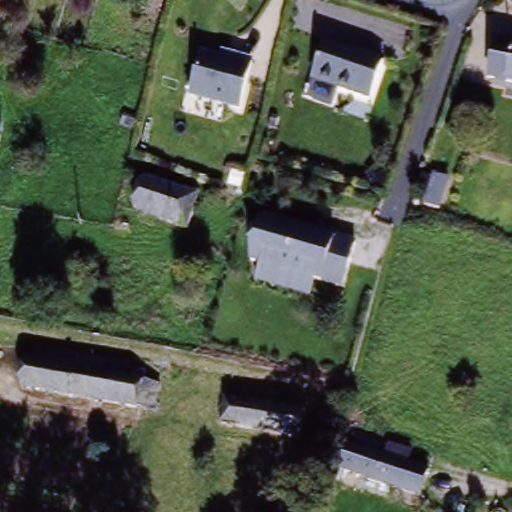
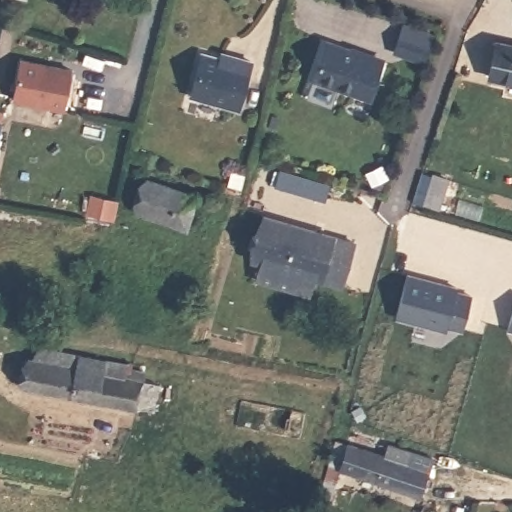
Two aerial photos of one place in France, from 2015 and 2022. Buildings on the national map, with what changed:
unchanged [(489,74),(497,38),(512,42),(512,81),(489,74)]
unchanged [(312,80),(326,40),(383,60),(369,100),(312,80)]
unchanged [(190,90),(204,50),(235,60),(237,55),(254,60),(237,106),(190,90)]
new [(20,61),(72,72),(64,110),(12,100),(20,61)]
new [(331,186),(326,201),(270,186),(275,171),(331,186)]
unchanged [(452,176),(444,209),(424,204),(432,172),(452,176)]
unchanged [(145,183),(180,194),(182,187),(197,191),(188,222),(138,207),(145,183)]
unchanged [(252,281),(257,265),(247,261),(260,219),(352,245),(339,288),(311,280),(306,297),(252,281)]
new [(459,288),(457,293),(472,296),(464,332),(448,328),(447,332),(395,320),(407,275),(459,288)]
new [(512,318),(512,331),(509,330),(512,318)]
unchanged [(33,360),(80,365),(82,346),(104,350),(102,370),(125,373),(127,355),(148,358),(145,378),(164,381),(160,410),(28,390),(33,360)]
unchanged [(311,411),(305,438),(230,421),(237,395),(311,411)]
unchanged [(365,453),(386,460),(390,447),(412,453),(407,466),(432,473),(425,498),(357,477),(365,453)]

